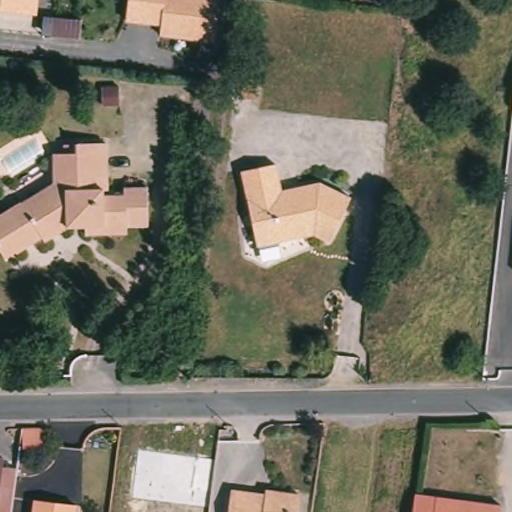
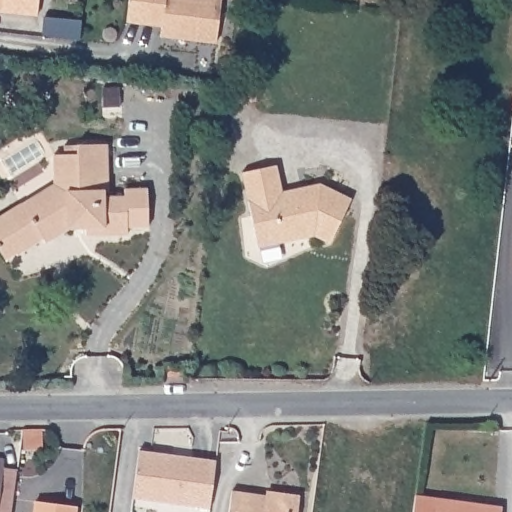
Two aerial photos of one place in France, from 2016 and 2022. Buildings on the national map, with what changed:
unchanged [(0,12),(0,0),(38,0),(36,16),(0,12)]
unchanged [(147,0),(220,0),(216,45),(160,37),(161,28),(144,26),(147,0)]
unchanged [(270,4),(270,0),(288,0),(287,7),(270,4)]
unchanged [(205,61),(204,67),(203,70),(194,68),(194,72),(193,75),(182,72),(183,71),(183,66),(185,57),(205,61)]
unchanged [(0,215),(21,202),(25,210),(55,191),(54,154),(77,154),(76,144),(107,144),(108,190),(104,190),(104,196),(125,196),(125,188),(148,188),(149,227),(126,227),(126,235),(86,236),(86,229),(69,229),(46,242),(44,238),(18,254),(6,261),(0,250),(0,215)]
unchanged [(315,238),(258,250),(242,176),(276,168),(282,195),(320,186),(351,201),(330,245),(315,238)]
new [(139,451),(216,460),(210,508),(133,498),(139,451)]
unchanged [(233,491),(272,496),(273,492),(292,494),(300,495),(297,512),(230,512),(233,491)]
unchanged [(502,507),(501,512),(413,512),(415,496),(502,507)]
unchanged [(77,507),(76,512),(33,512),(35,502),(77,507)]

